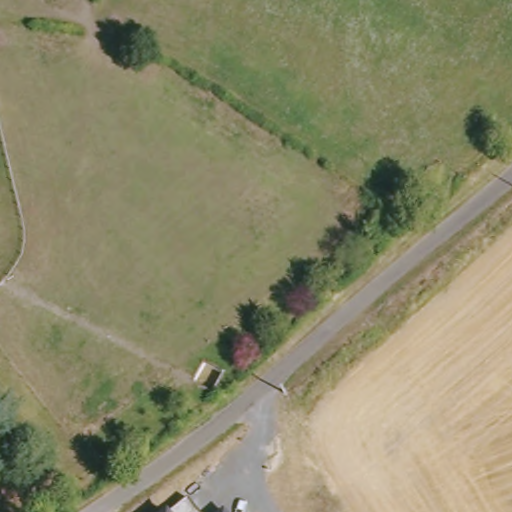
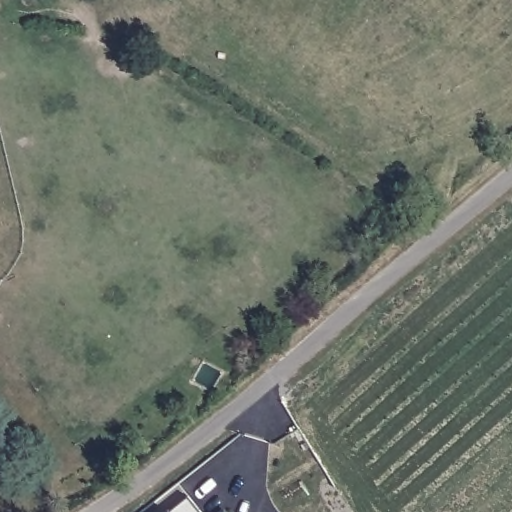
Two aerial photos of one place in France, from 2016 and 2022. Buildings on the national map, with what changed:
unchanged [(200,512),(170,512),(189,499),(200,512)]
unchanged [(223,509),(226,512),(220,512),(223,509)]

